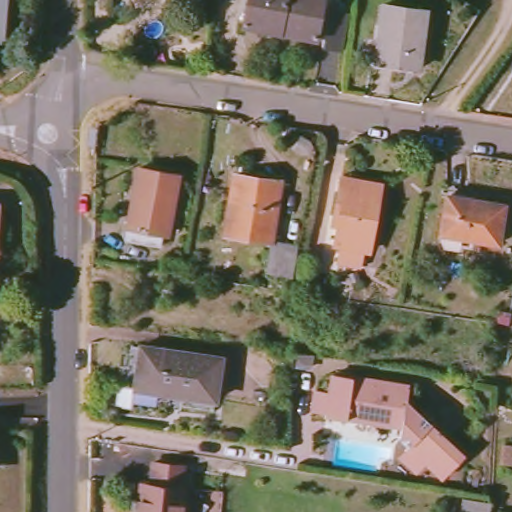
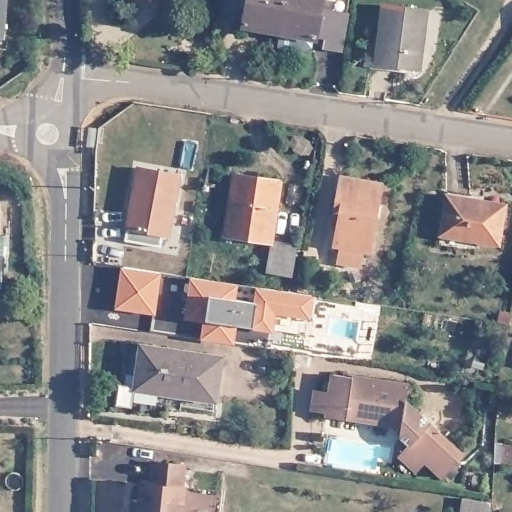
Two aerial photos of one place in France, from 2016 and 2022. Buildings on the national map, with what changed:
unchanged [(5,0),(2,35),(0,35),(0,0),(5,0)]
unchanged [(246,0),(286,0),(280,33),(242,28),(246,0)]
unchanged [(280,33),(286,0),(323,0),(318,37),(280,33)]
unchanged [(379,56),(385,6),(427,11),(418,71),(378,66),(379,56)]
unchanged [(324,46),(327,10),(347,11),(343,44),(342,47),(324,46)]
unchanged [(180,171),(172,231),(165,230),(163,240),(128,235),(138,165),(180,171)]
unchanged [(280,181),(271,241),(227,235),(236,174),(280,181)]
unchanged [(377,184),(368,251),(337,246),(341,218),(335,217),(342,179),(377,184)]
unchanged [(506,206),(500,242),(445,233),(451,197),(506,206)]
unchanged [(297,273),(270,270),(274,243),(301,247),(297,273)]
unchanged [(307,255),(326,258),(322,282),(303,280),(307,255)]
new [(161,275),(155,314),(115,308),(120,269),(161,275)]
new [(273,315),(272,333),(252,327),(236,325),(232,345),(200,341),(202,321),(184,319),(189,278),(311,297),(309,318),(273,315)]
unchanged [(133,396),(135,384),(137,376),(143,343),(222,357),(215,397),(215,400),(158,390),(157,400),(133,396)]
unchanged [(411,387),(408,405),(447,443),(430,462),(404,438),(405,425),(362,419),(363,412),(352,411),(350,421),(332,417),(327,412),(317,411),(320,392),(332,394),(336,376),(411,387)]
unchanged [(141,484),(147,485),(152,463),(182,468),(175,500),(187,502),(185,512),(138,512),(141,484)]
unchanged [(484,512),(469,512),(470,510),(484,512)]

